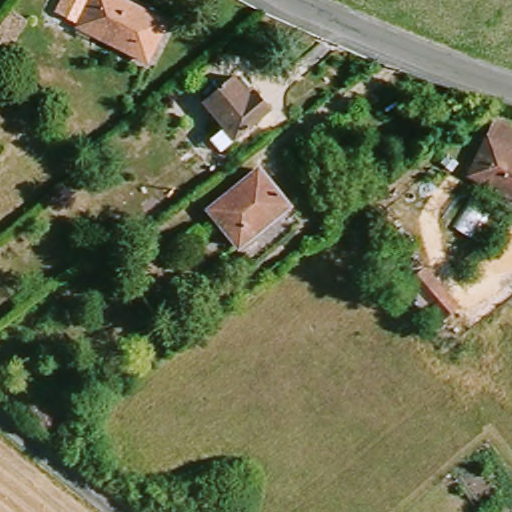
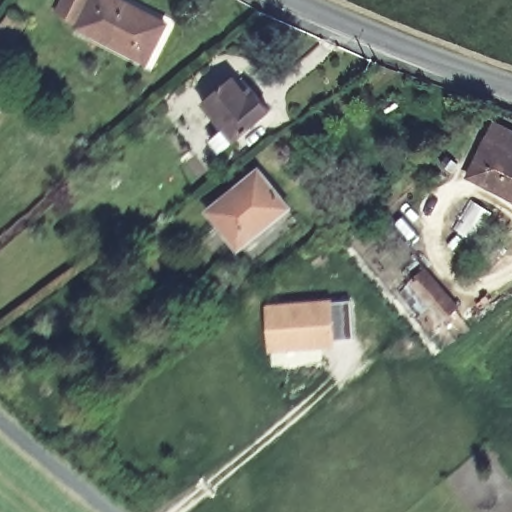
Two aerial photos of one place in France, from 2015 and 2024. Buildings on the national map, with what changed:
unchanged [(63,9),(68,0),(131,0),(178,26),(156,64),(85,25),(86,22),(63,9)]
unchanged [(220,152),(211,142),(223,131),(201,104),(234,74),(267,111),(220,152)]
unchanged [(469,179),(488,138),(493,126),(512,134),(512,198),(469,179)]
unchanged [(239,247),(211,214),(259,173),(288,207),(239,247)]
unchanged [(438,317),(409,279),(427,266),(455,305),(438,317)]
new [(270,351),(268,305),(331,298),(333,302),(351,301),(354,338),(336,340),(336,345),(270,351)]

